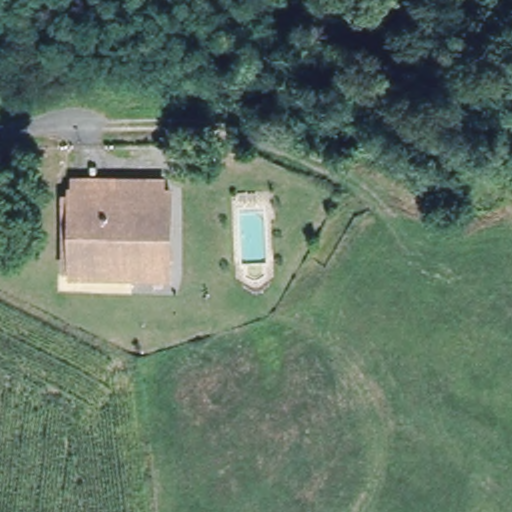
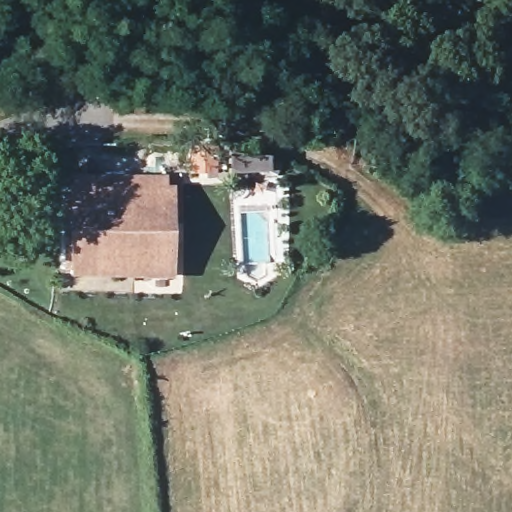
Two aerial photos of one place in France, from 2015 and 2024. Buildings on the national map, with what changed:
unchanged [(171,190),(169,272),(71,270),(68,187),(171,190)]

